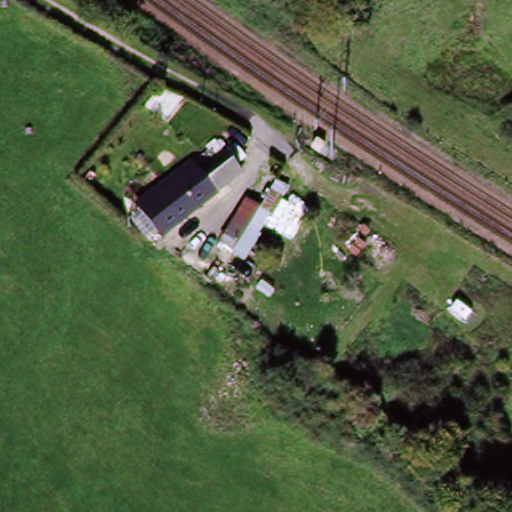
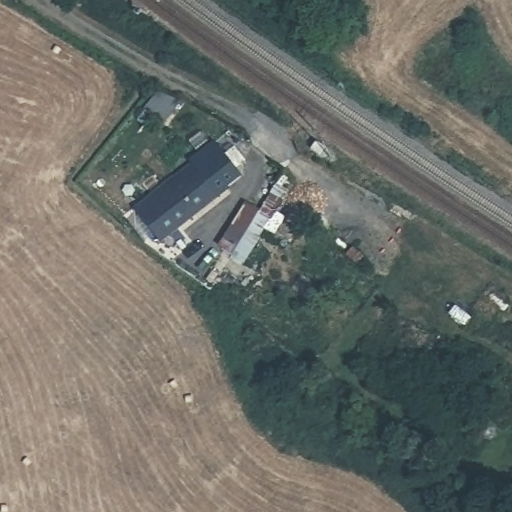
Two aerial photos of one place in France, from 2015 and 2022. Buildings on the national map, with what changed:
unchanged [(152,229),(149,233),(139,220),(198,175),(222,158),(240,182),(216,199),(161,241),(152,229)]
unchanged [(244,205),(255,212),(275,184),(287,191),(245,267),(216,249),(244,205)]

